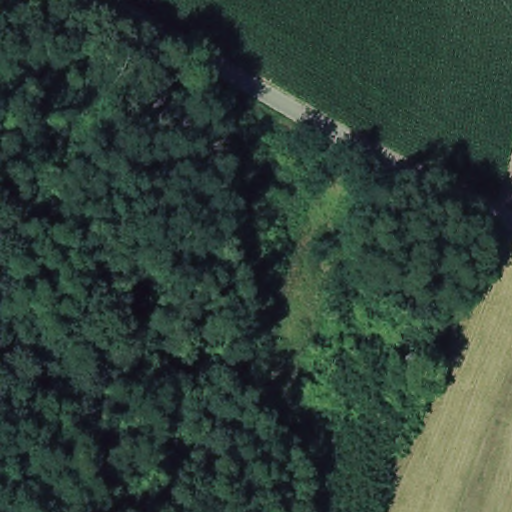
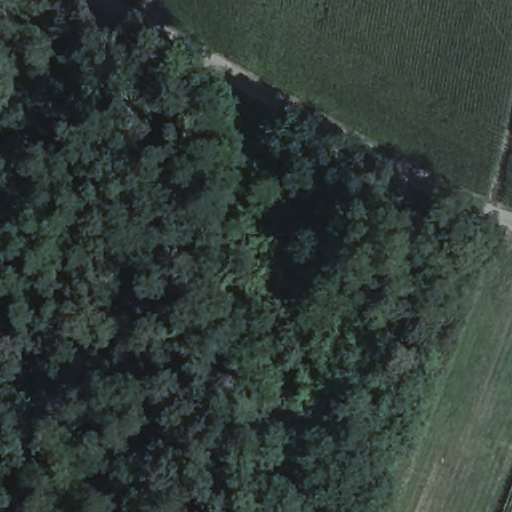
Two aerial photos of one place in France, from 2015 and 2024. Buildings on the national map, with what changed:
unchanged [(260,430),(247,456),(234,450),(247,424),(260,430)]

